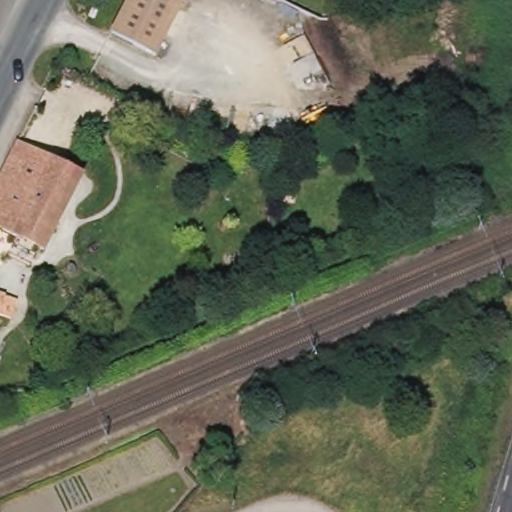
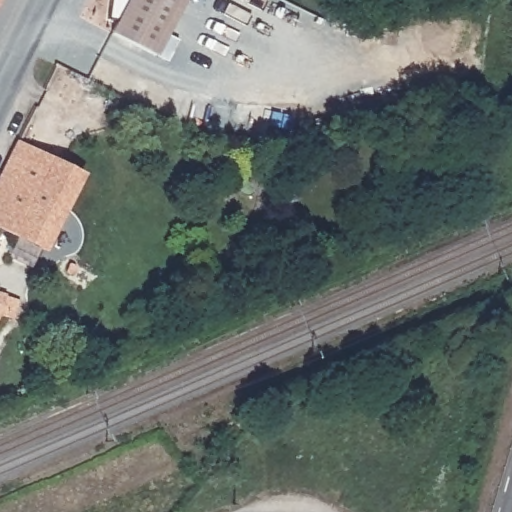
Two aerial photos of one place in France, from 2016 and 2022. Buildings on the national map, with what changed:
unchanged [(0,11),(0,0),(6,0),(0,11)]
unchanged [(127,0),(183,0),(157,53),(111,30),(127,0)]
unchanged [(16,145),(82,178),(64,213),(43,254),(0,232),(0,176),(16,145)]
unchanged [(16,297),(10,319),(0,316),(0,292),(16,297)]

